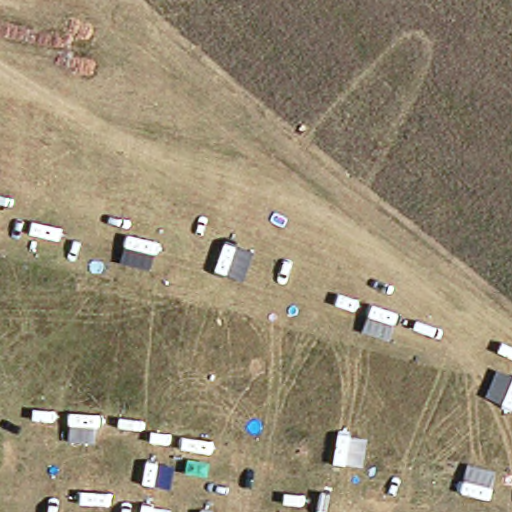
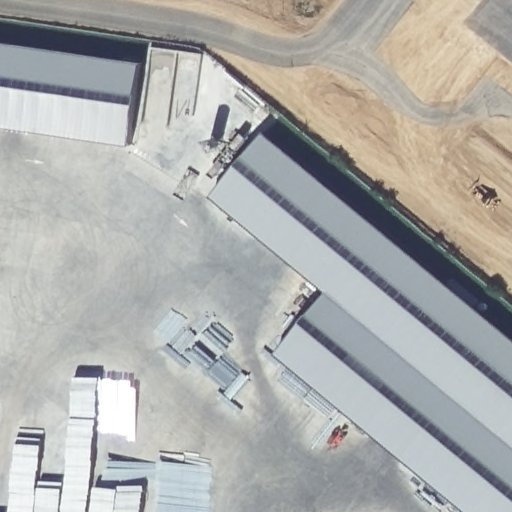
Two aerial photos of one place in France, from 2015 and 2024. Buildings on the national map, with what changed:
new [(135,67),(125,142),(0,125),(0,49),(135,67)]
new [(286,352),(336,289),(219,194),(262,140),(512,342),(512,512),(483,512),(286,352)]

